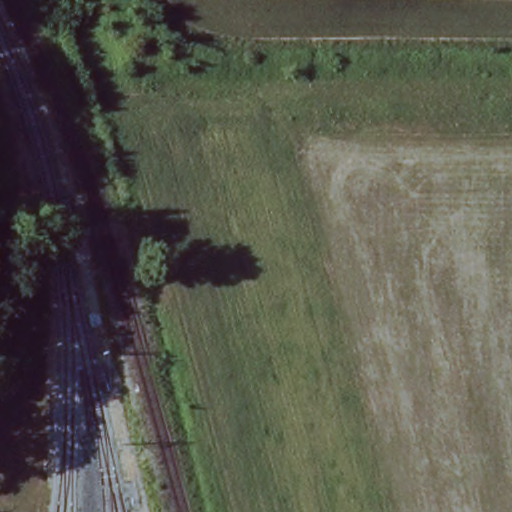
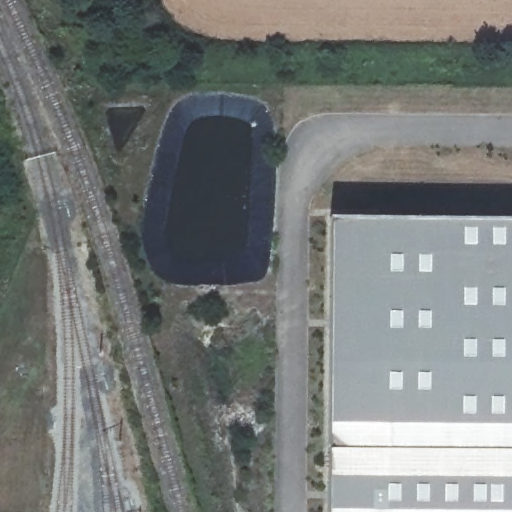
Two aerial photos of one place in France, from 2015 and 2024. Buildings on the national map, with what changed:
new [(332,219),(512,221),(512,512),(326,512),(332,219)]

